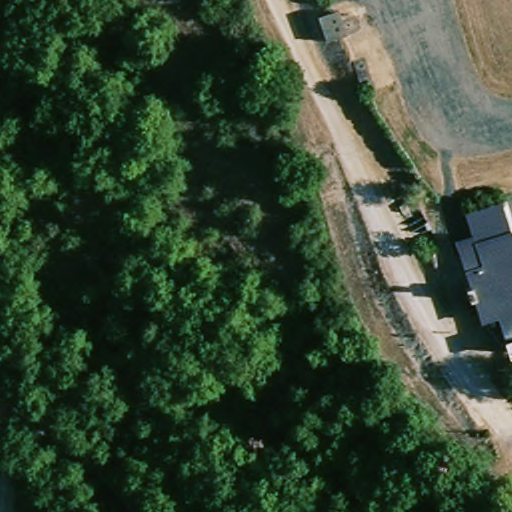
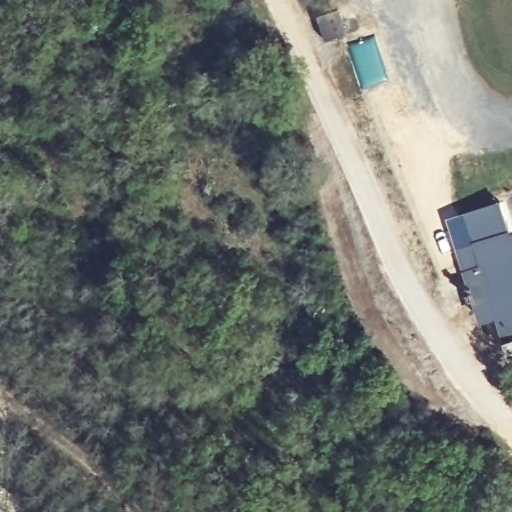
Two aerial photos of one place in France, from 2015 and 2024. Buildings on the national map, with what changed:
unchanged [(512,215),(512,344),(502,314),(484,318),(477,298),(470,298),(467,285),(475,281),(465,246),(480,241),(473,213),(509,203),(512,215)]

